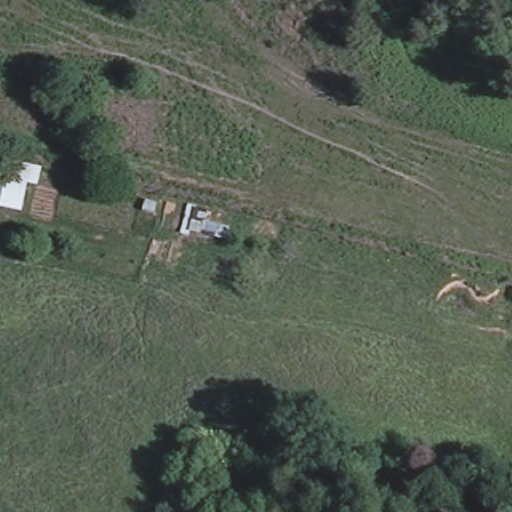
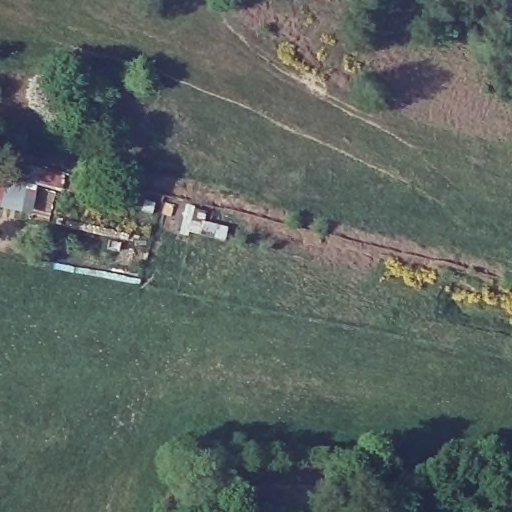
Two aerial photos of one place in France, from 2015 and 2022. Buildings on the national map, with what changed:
unchanged [(40,185),(29,183),(24,212),(0,208),(0,162),(42,167),(40,185)]

